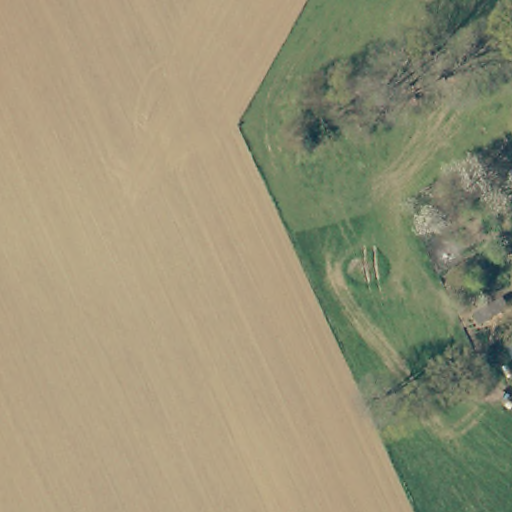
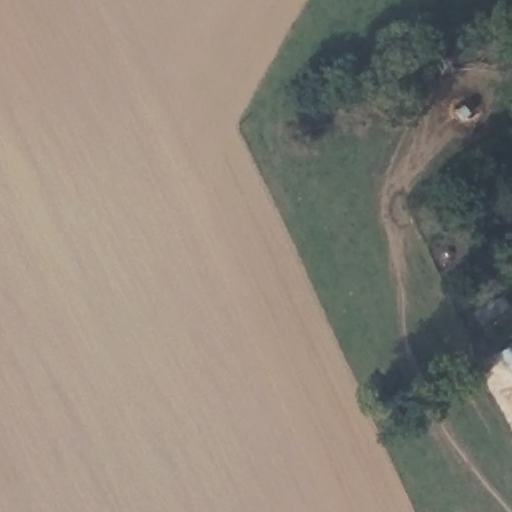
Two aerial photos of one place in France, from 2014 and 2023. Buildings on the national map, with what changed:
unchanged [(497,315),(468,328),(463,317),(492,301),(497,315)]

